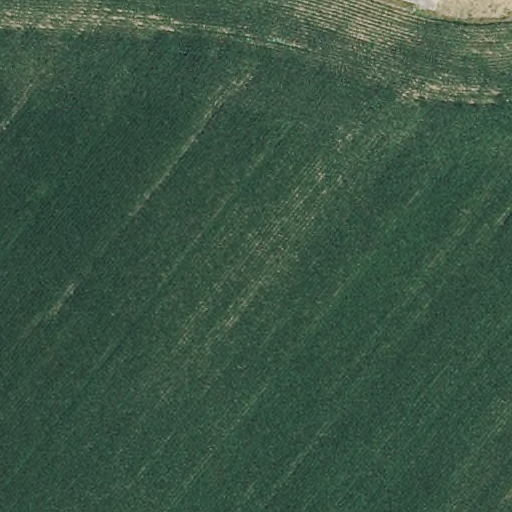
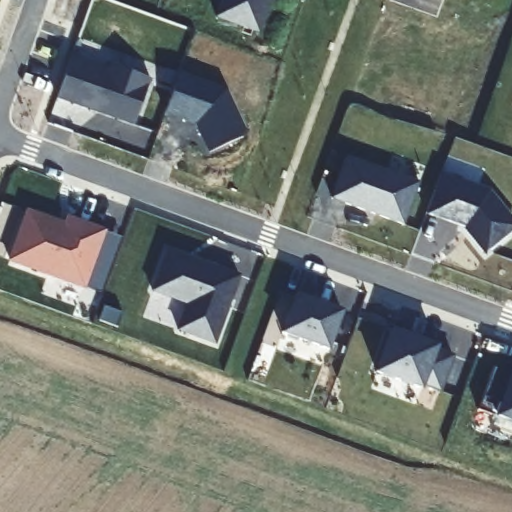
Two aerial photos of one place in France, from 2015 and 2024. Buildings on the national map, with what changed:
new [(222,0),(271,0),(258,35),(215,18),(222,0)]
new [(72,56),(106,68),(109,64),(150,80),(133,127),(56,99),(72,56)]
new [(179,73),(225,90),(245,132),(242,137),(207,153),(195,125),(164,114),(179,73)]
new [(346,156),(419,184),(403,225),(330,199),(346,156)]
new [(490,191),(512,219),(512,232),(484,255),(462,229),(425,215),(440,174),(490,191)]
new [(27,209),(64,222),(67,216),(107,230),(105,233),(85,288),(85,290),(7,262),(27,209)]
new [(122,239),(102,293),(85,288),(105,233),(122,239)]
new [(167,247),(240,276),(215,345),(177,331),(186,306),(150,292),(167,247)]
new [(281,333),(295,294),(344,312),(328,351),(281,333)]
new [(392,328),(439,347),(437,350),(453,357),(440,393),(423,387),(422,391),(375,372),(392,328)]
new [(495,416),(479,409),(494,368),(510,375),(510,371),(512,372),(512,425),(494,418),(495,416)]

